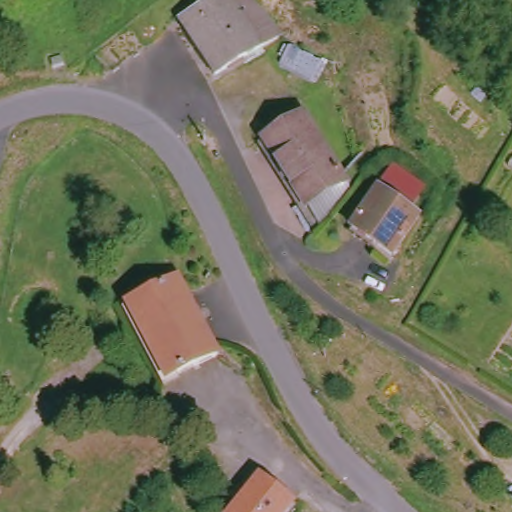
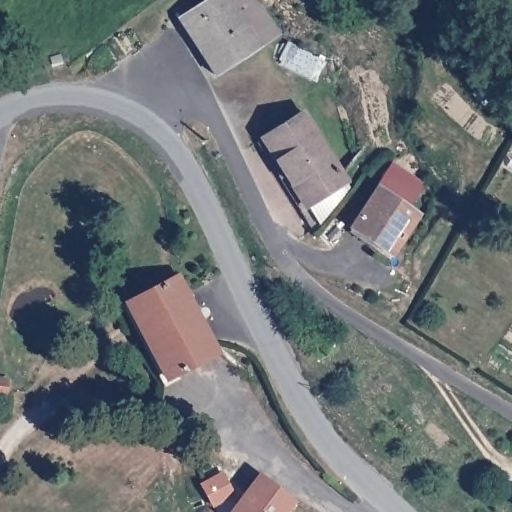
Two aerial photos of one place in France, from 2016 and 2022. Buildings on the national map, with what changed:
unchanged [(217,69),(195,41),(188,45),(173,22),(203,0),(258,0),(276,23),(217,69)]
unchanged [(313,76),(309,80),(274,59),(285,36),(325,58),(318,67),(328,80),(322,85),(313,76)]
unchanged [(264,141),(306,119),(345,195),(311,236),(264,141)]
unchanged [(390,252),(350,223),(379,188),(417,216),(390,252)]
unchanged [(214,351),(168,378),(126,305),(172,279),(214,351)]
unchanged [(288,512),(237,512),(263,478),(294,503),(288,512)]

